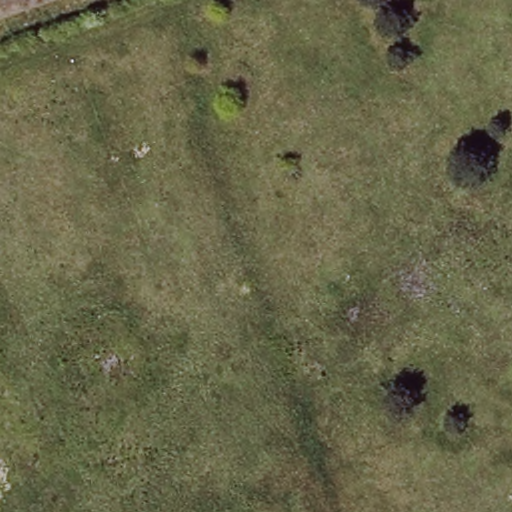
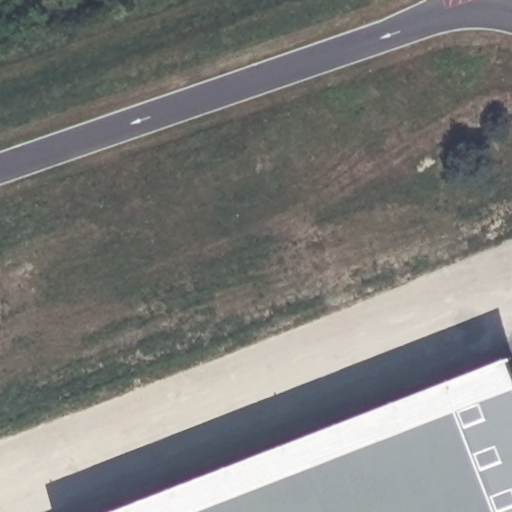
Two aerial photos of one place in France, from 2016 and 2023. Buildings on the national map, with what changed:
new [(512,356),(512,512),(120,512),(512,356)]

